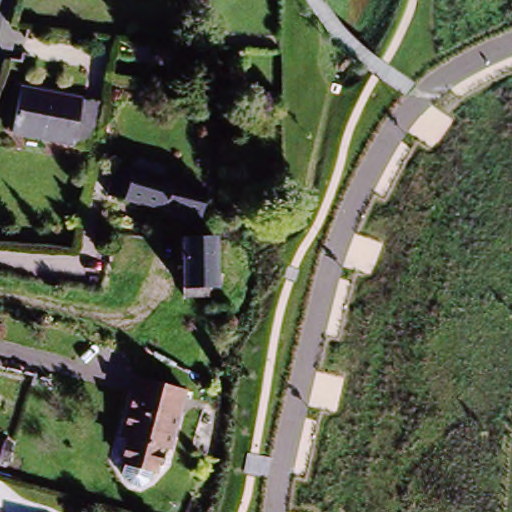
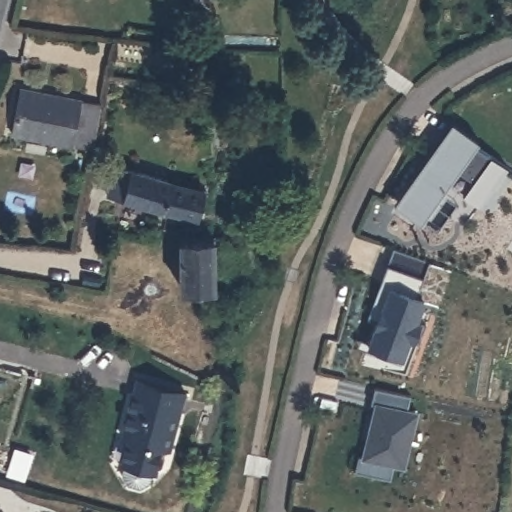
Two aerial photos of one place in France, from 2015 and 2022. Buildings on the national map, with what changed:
unchanged [(12,139),(22,94),(101,109),(92,155),(12,139)]
new [(454,121),(481,140),(476,146),(491,155),(508,167),(480,206),(465,192),(474,179),(460,169),(421,222),(396,203),(454,121)]
unchanged [(191,190),(185,220),(109,199),(117,169),(191,190)]
unchanged [(180,301),(180,289),(177,289),(175,239),(210,238),(210,288),(203,288),(203,300),(180,301)]
new [(395,249),(431,263),(452,271),(437,305),(426,300),(419,320),(425,322),(416,343),(411,341),(403,360),(368,344),(378,318),(370,316),(389,266),(395,249)]
unchanged [(161,448),(160,452),(163,457),(160,466),(155,469),(154,474),(150,473),(147,484),(138,490),(125,486),(119,477),(122,465),(118,464),(125,439),(117,437),(119,431),(128,394),(132,379),(181,392),(176,413),(167,450),(161,448)]
new [(361,454),(366,456),(378,404),(374,403),(377,388),(413,396),(410,411),(420,413),(407,466),(397,464),(394,479),(358,470),(361,454)]

